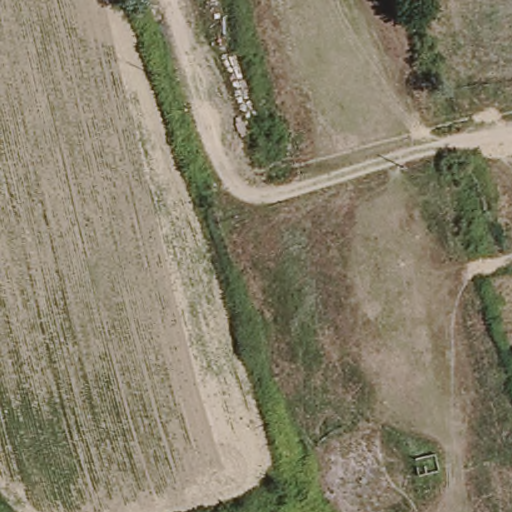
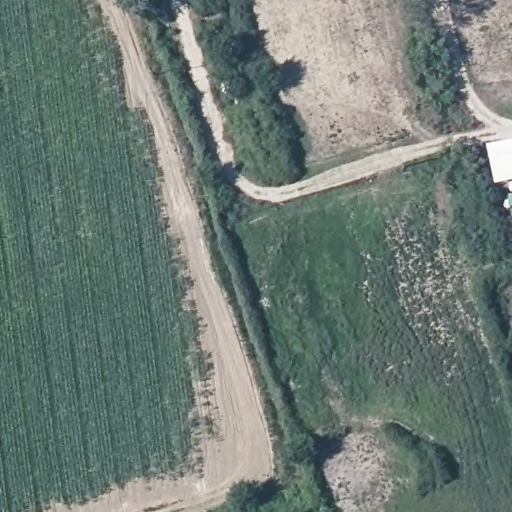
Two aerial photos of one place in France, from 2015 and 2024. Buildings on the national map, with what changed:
new [(496,185),(487,146),(512,141),(512,182),(496,185)]

